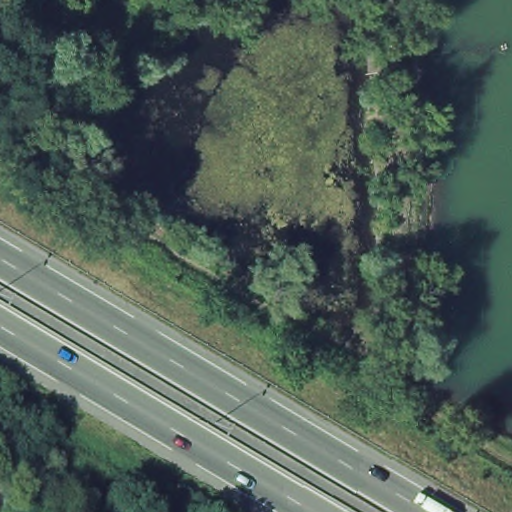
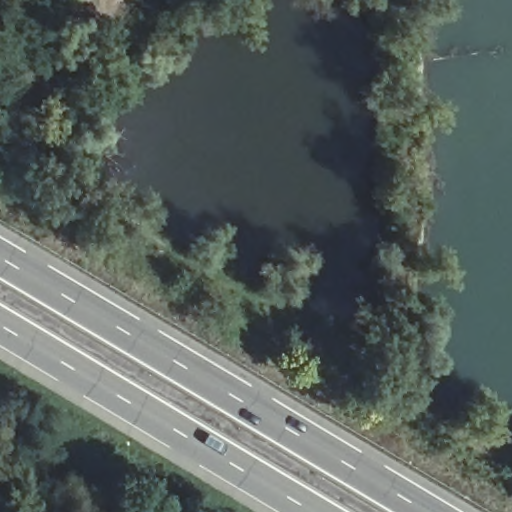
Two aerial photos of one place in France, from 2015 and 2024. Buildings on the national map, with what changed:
[]

